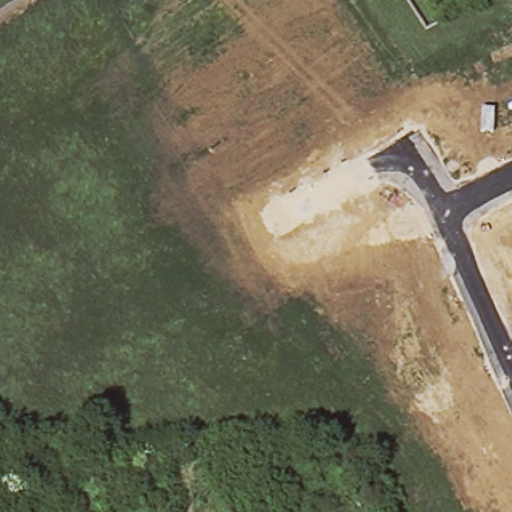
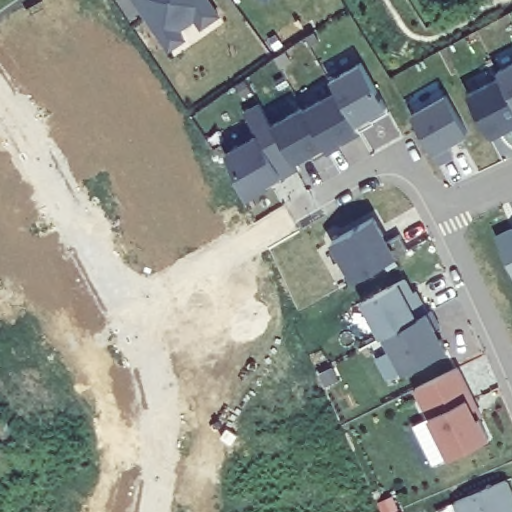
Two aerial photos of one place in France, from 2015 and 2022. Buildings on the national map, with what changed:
new [(350,141),(329,153),(305,111),(337,93),(330,77),(360,60),(387,105),(390,110),(372,119),(374,121),(359,131),(361,135),(350,141)]
new [(497,67),(512,60),(512,100),(502,80),(497,67)]
new [(469,97),(502,80),(512,100),(512,131),(510,132),(492,142),(490,137),(469,97)]
new [(469,133),(450,144),(455,155),(440,164),(433,152),(410,111),(445,91),(469,133)]
new [(247,200),(226,155),(259,137),(245,115),(262,105),(274,126),(295,165),(298,170),(282,180),(270,186),(247,200)]
new [(304,110),(305,111),(329,153),(329,154),(315,161),(312,155),(295,165),(274,126),(304,110)]
new [(389,239),(400,233),(408,249),(399,254),(352,280),(330,240),(376,214),(389,239)]
new [(512,232),(512,271),(497,239),(512,232)]
new [(415,290),(419,288),(430,310),(448,348),(402,372),(382,335),(380,337),(361,300),(400,280),(407,276),(415,290)]
new [(484,413),(480,415),(490,435),(447,456),(429,417),(413,388),(460,365),(484,413)]
new [(512,512),(456,512),(452,501),(509,477),(512,486),(512,512)]

